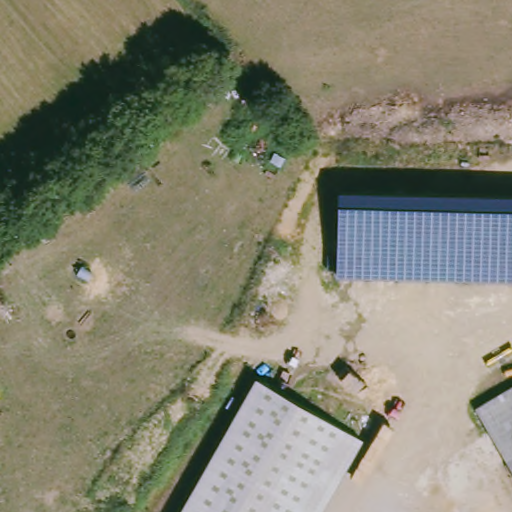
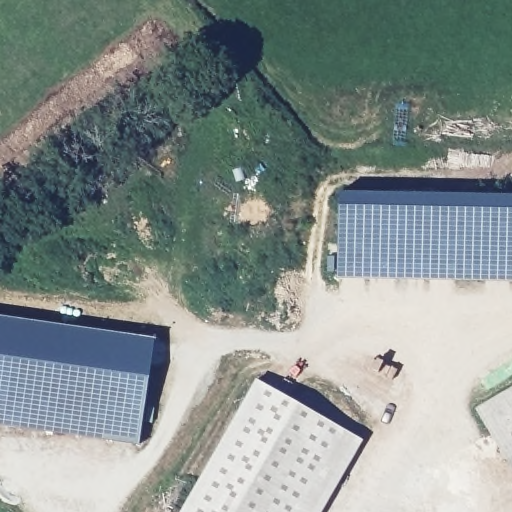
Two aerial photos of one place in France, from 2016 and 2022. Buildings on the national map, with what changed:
unchanged [(512,280),(337,276),(338,189),(512,194),(512,280)]
new [(153,338),(138,443),(0,424),(0,316),(153,338)]
unchanged [(180,512),(256,376),(361,435),(317,512),(180,512)]
unchanged [(512,392),(512,458),(483,410),(512,392)]

